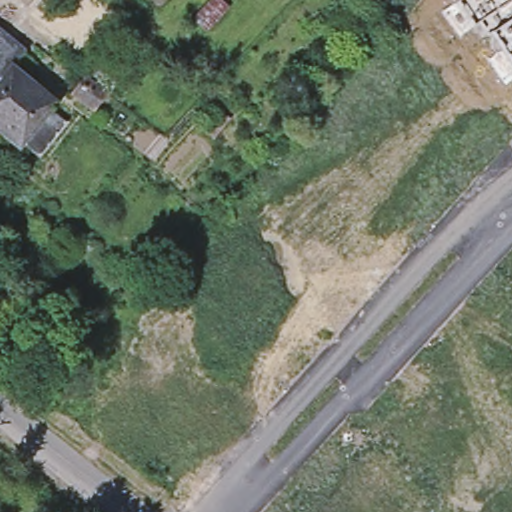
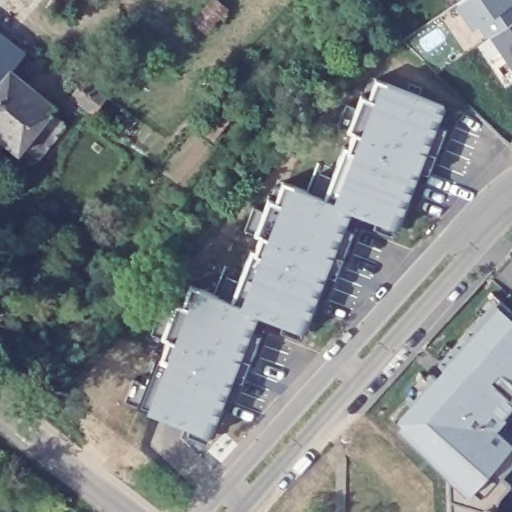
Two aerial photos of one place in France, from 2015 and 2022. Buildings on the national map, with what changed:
unchanged [(487,35),(479,21),(473,25),(458,1),(461,0),(512,0),(512,62),(492,33),(487,35)]
unchanged [(25,55),(13,70),(11,68),(0,81),(0,34),(25,55)]
unchanged [(42,156),(27,144),(20,151),(0,135),(0,81),(11,68),(13,70),(56,106),(52,111),(67,124),(42,156)]
unchanged [(108,98),(97,114),(72,95),(83,79),(108,98)]
new [(187,435),(190,427),(137,406),(137,405),(125,400),(133,380),(145,384),(158,352),(162,354),(167,340),(162,338),(152,333),(160,311),(170,315),(175,302),(182,305),(190,285),(218,296),(227,275),(239,280),(252,248),(255,250),(260,236),(255,234),(245,229),(253,207),(263,211),(268,198),(275,201),(283,181),(311,192),(320,172),(332,176),(345,145),(348,146),(353,133),(347,130),(338,126),(347,104),(356,108),(361,95),(368,98),(376,79),(444,105),(407,199),(410,200),(398,229),(397,228),(393,236),(374,228),(377,220),(374,219),(374,218),(351,210),(345,226),(355,230),(336,279),(325,275),(314,303),(317,303),(305,332),(303,331),(300,339),(280,332),(284,324),(257,313),(251,330),(262,334),(243,383),(232,378),(221,406),(223,407),(212,436),(210,435),(207,443),(187,435)]
new [(437,122),(448,126),(429,176),(418,171),(437,122)]
new [(450,481),(398,429),(403,425),(395,418),(498,304),(512,317),(512,408),(495,428),(511,443),(512,444),(512,463),(500,476),(510,484),(497,499),(495,509),(506,512),(451,512),(450,481)]

